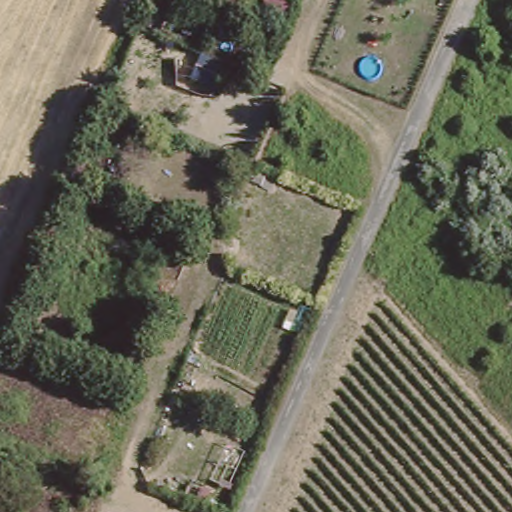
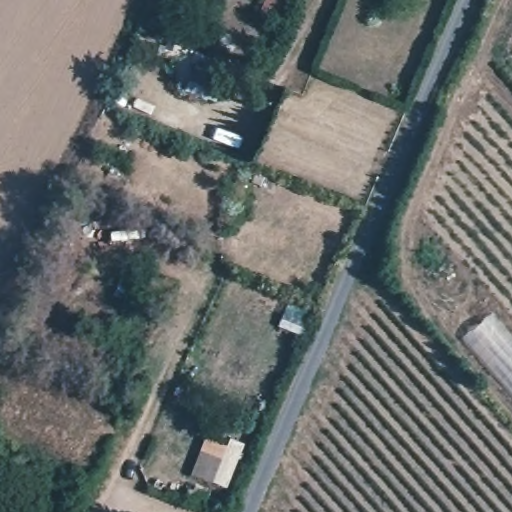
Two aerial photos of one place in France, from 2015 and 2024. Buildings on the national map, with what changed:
new [(462,340),(493,314),(512,335),(512,397),(462,340)]
new [(230,438),(247,444),(228,492),(190,477),(206,437),(227,445),(230,438)]

